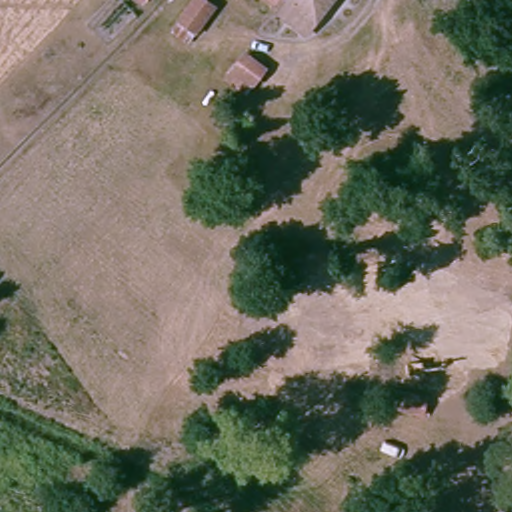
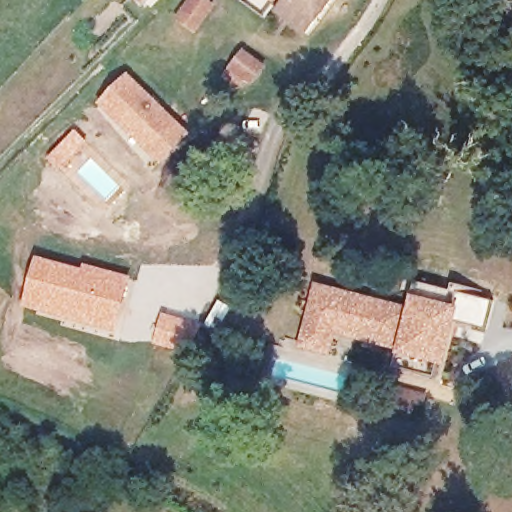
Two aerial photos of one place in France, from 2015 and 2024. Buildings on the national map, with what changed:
unchanged [(195,0),(196,0),(212,13),(192,37),(188,43),(184,47),(168,34),(169,34),(176,24),(195,0)]
unchanged [(331,0),(305,31),(290,20),(276,8),(283,0),(331,0)]
unchanged [(235,89),(222,79),(235,63),(242,54),(262,70),(258,74),(250,84),(242,94),(235,89)]
new [(151,144),(101,98),(127,70),(187,127),(175,141),(162,154),(151,144)]
new [(73,129),(87,143),(61,172),(46,158),(73,129)]
new [(37,255),(82,267),(83,263),(130,275),(116,333),(24,307),(37,255)]
new [(394,351),(407,304),(415,280),(451,289),(448,303),(459,305),(455,323),(459,324),(445,368),(394,355),(394,351)]
new [(312,281),(407,304),(394,351),(335,335),(330,356),(295,347),(312,281)]
new [(451,289),(493,299),(484,330),(480,329),(459,324),(455,323),(459,305),(448,303),(451,289)]
demolished [(503,307),(491,364),(428,349),(438,293),(503,307)]
demolished [(371,354),(297,339),(279,335),(285,304),(376,324),(371,354)]
new [(160,312),(196,322),(186,353),(151,343),(160,312)]
demolished [(382,406),(385,392),(385,387),(420,395),(417,414),(382,406)]

